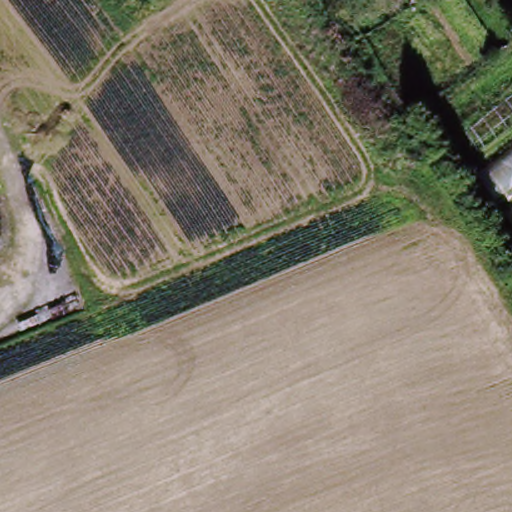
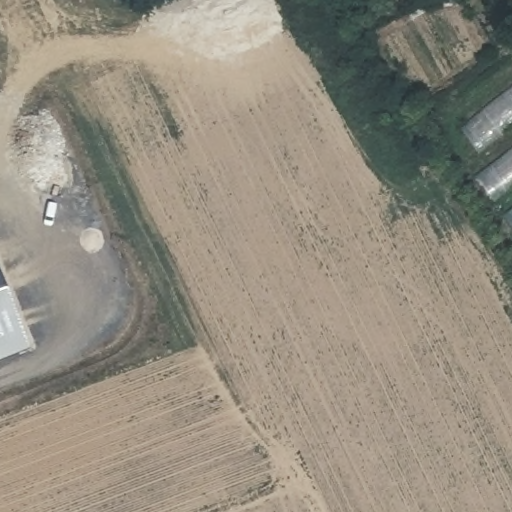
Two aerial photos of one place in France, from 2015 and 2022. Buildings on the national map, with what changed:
unchanged [(512,88),(512,232),(446,138),(512,88)]
new [(26,352),(0,362),(0,286),(26,352)]

